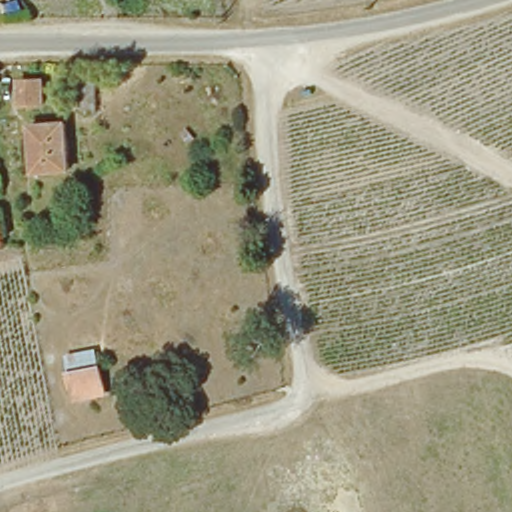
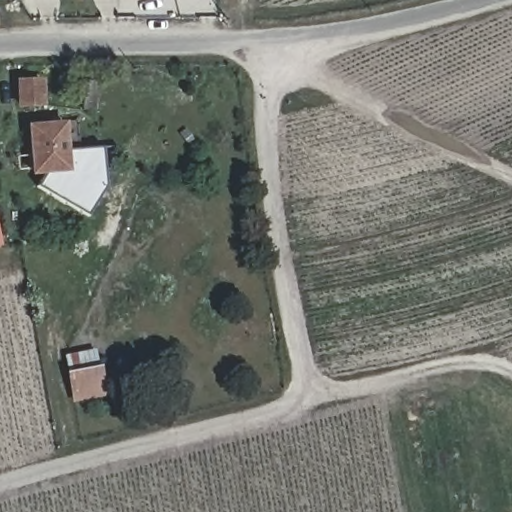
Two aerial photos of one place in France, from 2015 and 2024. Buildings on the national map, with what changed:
unchanged [(42,106),(20,106),(20,82),(42,82),(42,106)]
unchanged [(66,173),(34,174),(31,129),(64,127),(66,173)]
new [(101,148),(105,186),(87,215),(36,185),(44,174),(66,173),(65,152),(101,148)]
new [(0,246),(0,227),(3,245),(0,246)]
unchanged [(98,350),(104,403),(70,408),(63,356),(98,350)]

